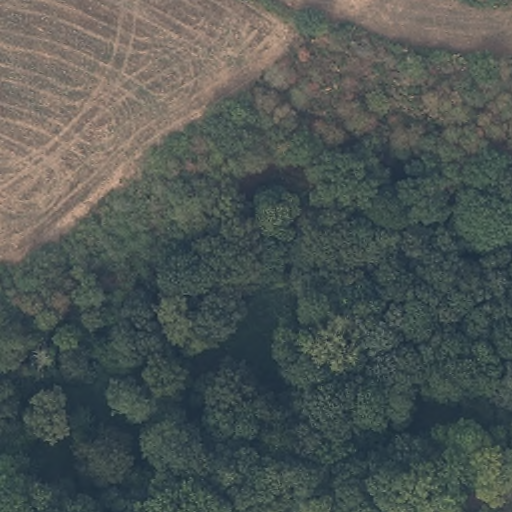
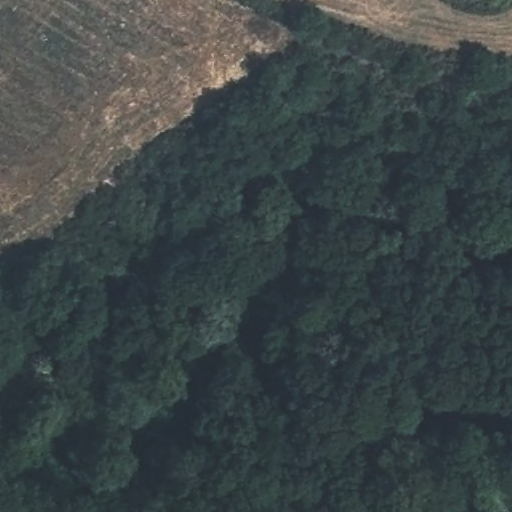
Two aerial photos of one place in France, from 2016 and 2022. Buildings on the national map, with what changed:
[]

